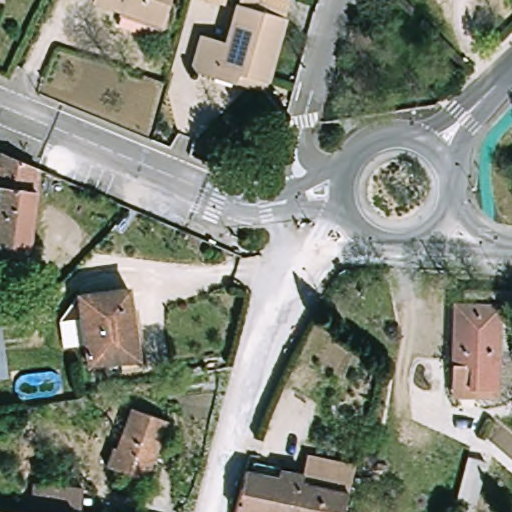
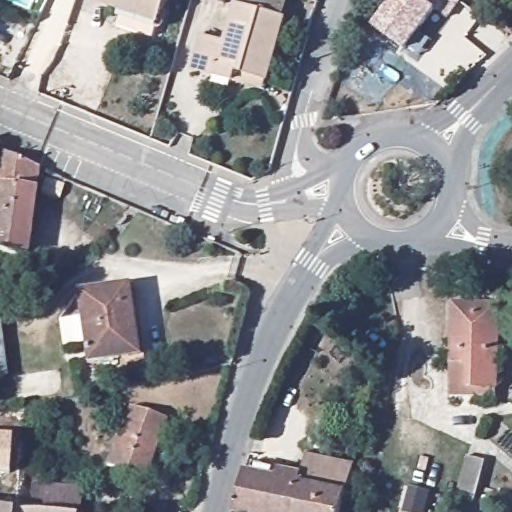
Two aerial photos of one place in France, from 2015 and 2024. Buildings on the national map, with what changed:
unchanged [(97,0),(171,0),(164,22),(97,0)]
unchanged [(216,0),(229,0),(228,4),(216,0)]
new [(448,20),(436,10),(405,50),(372,25),(391,0),(458,0),(461,2),(448,20)]
unchanged [(289,21),(268,94),(196,74),(205,40),(230,46),(240,8),(289,21)]
unchanged [(48,168),(36,255),(1,250),(5,216),(0,215),(0,201),(7,150),(48,168)]
unchanged [(5,313),(0,314),(0,278),(5,313)]
unchanged [(127,286),(137,357),(87,365),(77,293),(127,286)]
unchanged [(467,308),(467,293),(504,295),(501,400),(455,399),(458,307),(467,308)]
unchanged [(5,313),(12,377),(0,379),(0,314),(5,313)]
unchanged [(171,420),(149,479),(111,465),(118,446),(121,447),(136,407),(171,420)]
new [(12,438),(9,473),(0,473),(0,437),(12,438)]
unchanged [(303,480),(305,472),(310,452),(360,463),(351,491),(303,480)]
unchanged [(485,460),(473,503),(456,498),(467,455),(485,460)]
unchanged [(303,480),(351,491),(346,512),(243,512),(238,511),(248,470),(280,476),(282,468),(305,472),(303,480)]
unchanged [(86,488),(84,512),(73,512),(35,508),(37,483),(86,488)]
unchanged [(12,512),(0,512),(0,510),(12,512)]

